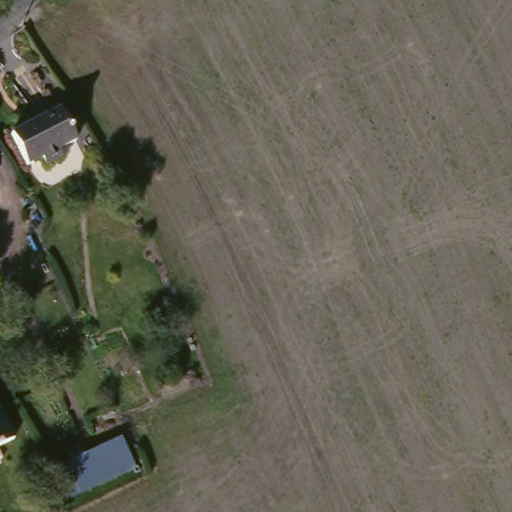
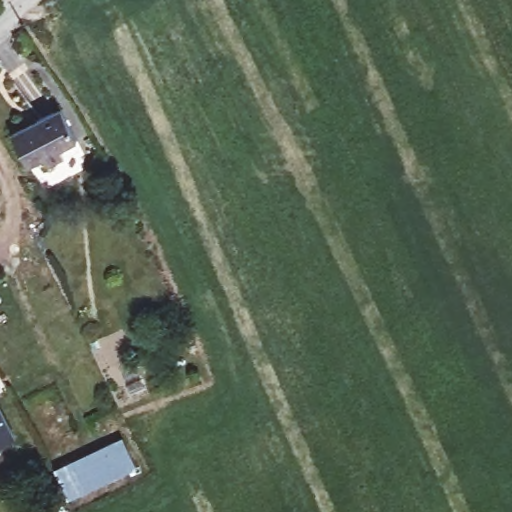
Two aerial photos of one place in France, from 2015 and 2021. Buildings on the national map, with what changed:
unchanged [(78,142),(61,151),(65,160),(48,168),(44,160),(28,168),(12,136),(61,111),(78,142)]
unchanged [(17,435),(0,444),(0,403),(17,435)]
unchanged [(127,471),(84,492),(70,462),(113,442),(127,471)]

